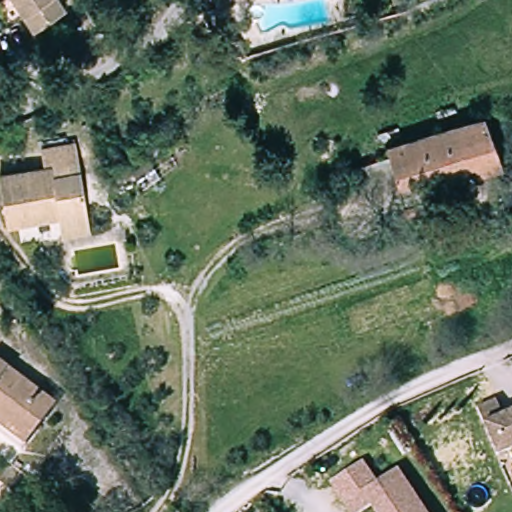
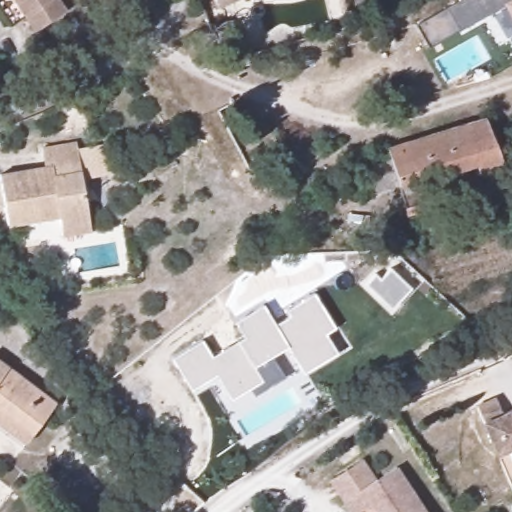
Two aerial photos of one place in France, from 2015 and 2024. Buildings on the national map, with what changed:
unchanged [(13,21),(0,29),(0,0),(53,0),(61,14),(32,32),(24,39),(13,21)]
unchanged [(221,8),(218,0),(237,0),(221,8)]
new [(461,0),(512,0),(512,20),(504,6),(428,50),(415,26),(445,9),(461,0)]
new [(512,38),(512,45),(509,40),(512,38)]
unchanged [(430,202),(408,210),(398,186),(363,197),(354,170),(386,158),(384,150),(485,112),(502,157),(479,167),(474,159),(420,177),(429,200),(430,202)]
unchanged [(0,178),(0,170),(43,163),(41,147),(75,141),(87,227),(56,232),(57,240),(43,242),(41,235),(18,238),(17,220),(8,222),(0,178)]
unchanged [(512,191),(511,192),(508,182),(512,181),(512,191)]
new [(202,340),(211,356),(242,337),(234,322),(263,305),(275,325),(288,316),(286,311),(314,294),(335,328),(326,335),(337,353),(303,375),(287,348),(271,357),(285,377),(254,397),(250,390),(231,400),(217,376),(191,391),(171,358),(202,340)]
unchanged [(52,405),(24,445),(0,427),(0,367),(52,405)]
unchanged [(484,425),(486,424),(478,408),(497,400),(504,416),(512,413),(512,453),(499,458),(484,425)]
unchanged [(378,483),(346,506),(330,480),(362,458),(378,483)]
unchanged [(367,512),(350,512),(346,506),(378,483),(400,469),(428,512),(376,512),(374,508),(367,512)]

